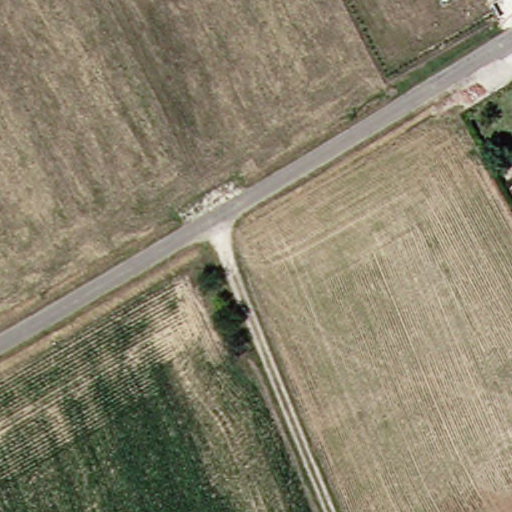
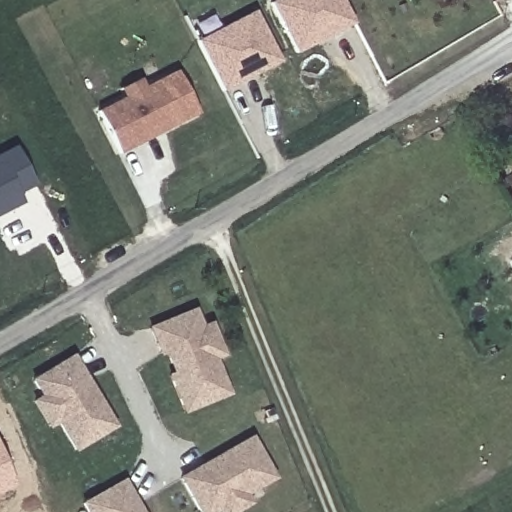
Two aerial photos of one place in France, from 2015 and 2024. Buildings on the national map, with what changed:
new [(293,58),(265,6),(277,0),(338,0),(352,27),(293,58)]
new [(278,66),(219,95),(193,44),(252,14),(278,66)]
new [(195,115),(115,154),(94,112),(119,99),(116,93),(139,81),(143,88),(175,73),(195,115)]
new [(30,189),(13,198),(18,208),(0,216),(0,154),(11,149),(30,189)]
new [(198,332),(208,327),(220,358),(211,362),(226,398),(181,415),(167,379),(173,377),(164,355),(158,358),(155,351),(148,333),(191,314),(198,332)]
new [(31,384),(65,363),(70,359),(84,383),(112,429),(73,452),(63,436),(54,441),(39,416),(48,411),(31,384)]
new [(233,512),(228,503),(212,512),(197,512),(181,484),(178,479),(202,466),(248,440),(271,479),(254,489),(258,498),(233,512)]
new [(11,491),(0,495),(0,465),(11,491)]
new [(79,505),(113,486),(119,483),(132,507),(136,512),(84,512),(79,505)]

